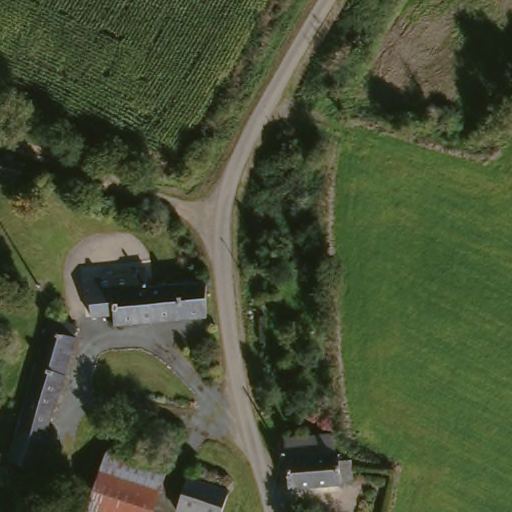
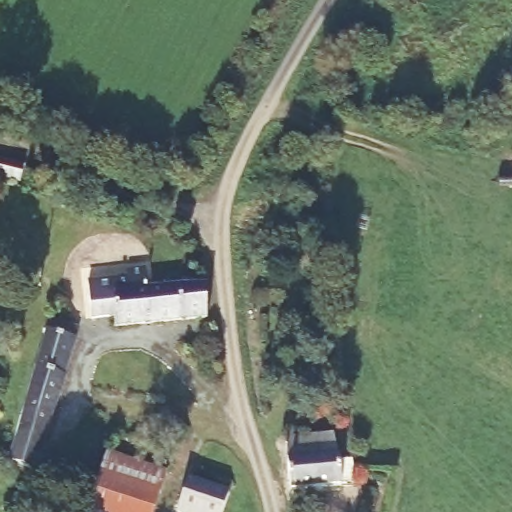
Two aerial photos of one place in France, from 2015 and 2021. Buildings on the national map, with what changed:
unchanged [(0,171),(0,166),(4,154),(33,165),(27,183),(0,171)]
unchanged [(86,284),(120,282),(121,269),(144,268),(149,295),(85,299),(86,284)]
unchanged [(204,323),(186,323),(152,327),(149,295),(171,291),(203,289),(206,309),(204,323)]
unchanged [(152,327),(116,330),(113,325),(113,320),(91,322),(88,317),(85,299),(149,295),(152,327)]
unchanged [(60,384),(34,376),(45,343),(51,330),(76,338),(73,353),(64,389),(60,384)]
unchanged [(32,476),(0,467),(34,376),(60,384),(64,389),(32,476)]
unchanged [(338,489),(292,491),(286,437),(330,438),(334,449),(338,489)]
unchanged [(164,512),(152,512),(99,494),(106,468),(154,482),(173,488),(164,512)]
unchanged [(222,512),(175,512),(184,480),(191,468),(228,482),(224,489),(229,494),(222,512)]
unchanged [(99,494),(152,512),(92,512),(99,494)]

